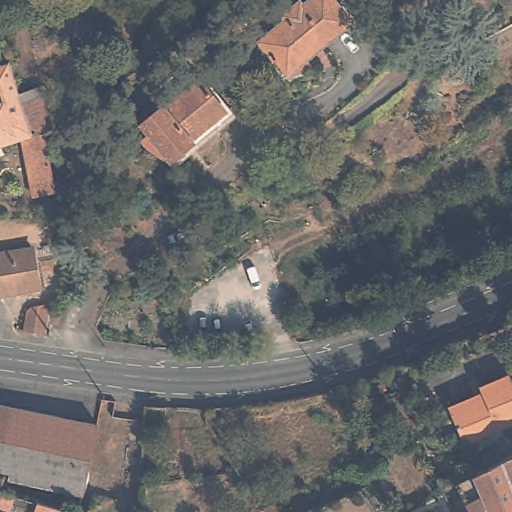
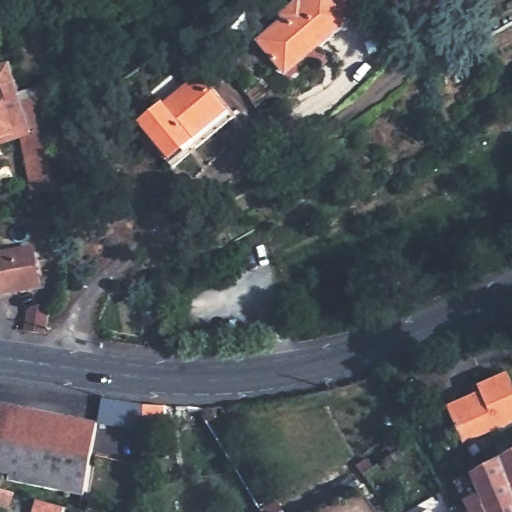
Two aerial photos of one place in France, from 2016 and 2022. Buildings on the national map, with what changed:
unchanged [(285,19),(283,14),(301,0),(304,2),(308,0),(336,0),(353,20),(322,45),(328,52),(293,80),(259,40),(285,19)]
unchanged [(19,94),(32,134),(23,137),(0,145),(0,62),(12,59),(19,94)]
unchanged [(176,91),(195,75),(227,113),(171,160),(165,153),(163,155),(144,143),(137,134),(144,128),(136,119),(173,88),(176,91)]
unchanged [(44,132),(32,134),(19,94),(45,87),(57,128),(44,132)]
unchanged [(23,137),(32,134),(44,132),(55,190),(34,194),(23,137)]
unchanged [(51,282),(0,293),(0,253),(43,244),(51,282)]
unchanged [(51,334),(23,330),(25,311),(30,306),(50,303),(50,305),(51,334)]
unchanged [(483,399),(479,388),(508,375),(512,384),(512,422),(463,443),(450,414),(483,399)]
unchanged [(78,494),(6,479),(6,474),(0,473),(0,404),(92,423),(78,494)]
unchanged [(144,405),(168,406),(164,430),(146,432),(144,405)]
unchanged [(483,508),(486,506),(471,476),(482,469),(495,461),(511,454),(512,454),(512,512),(485,512),(483,508)]
unchanged [(369,458),(375,467),(363,476),(356,466),(369,458)]
unchanged [(471,476),(486,506),(483,508),(485,512),(470,512),(455,483),(471,476)]
unchanged [(0,508),(0,491),(9,493),(3,508),(0,508)]
unchanged [(38,499),(67,505),(65,512),(33,512),(38,499)]
unchanged [(431,509),(432,512),(427,512),(431,509)]

